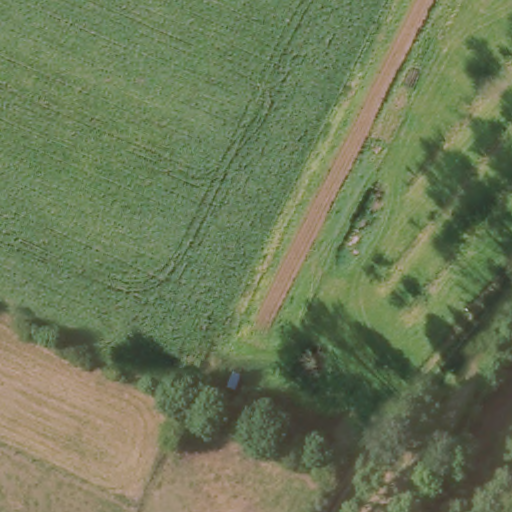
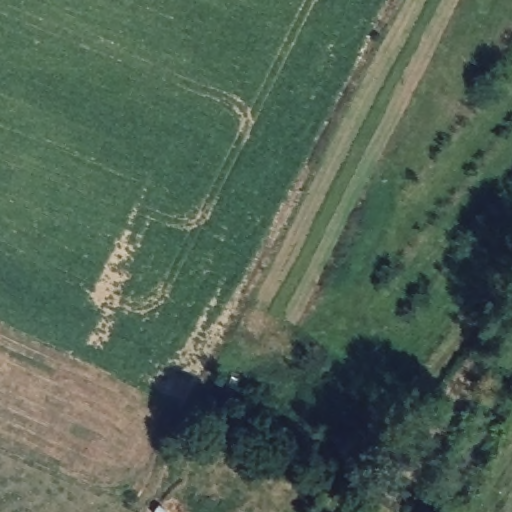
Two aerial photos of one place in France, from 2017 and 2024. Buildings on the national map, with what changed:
unchanged [(222,397),(225,380),(240,379),(235,398),(222,397)]

